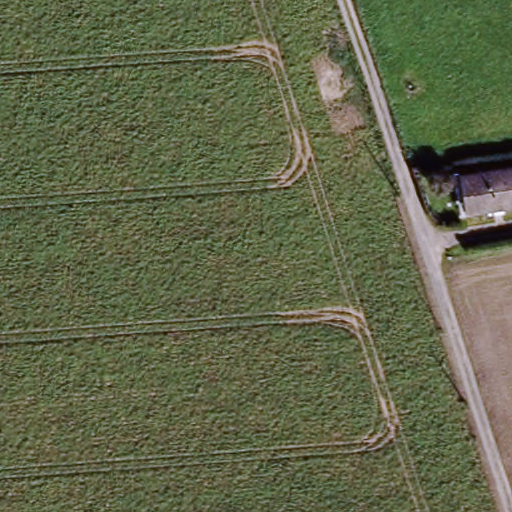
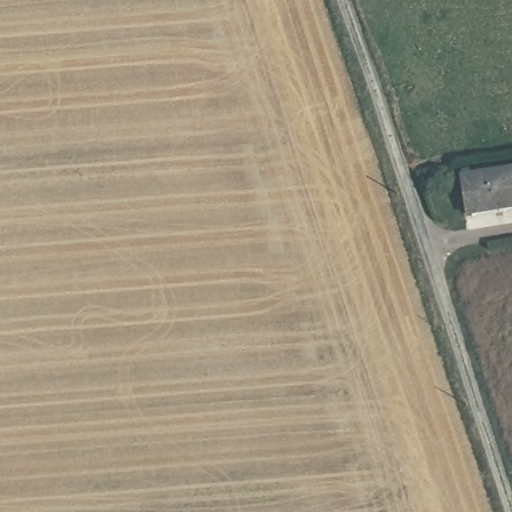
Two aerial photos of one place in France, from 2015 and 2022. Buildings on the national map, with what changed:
unchanged [(512,207),(465,217),(455,173),(512,168),(512,207)]

